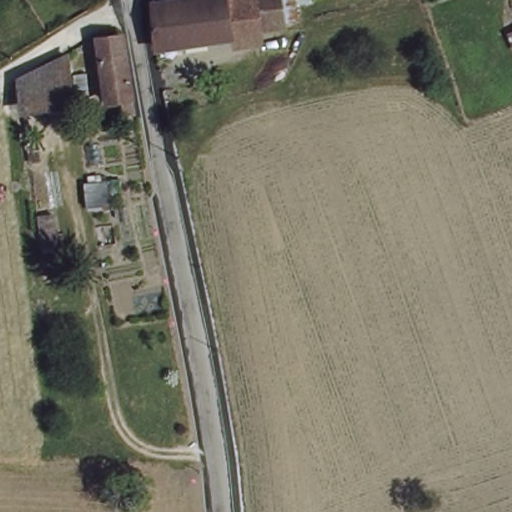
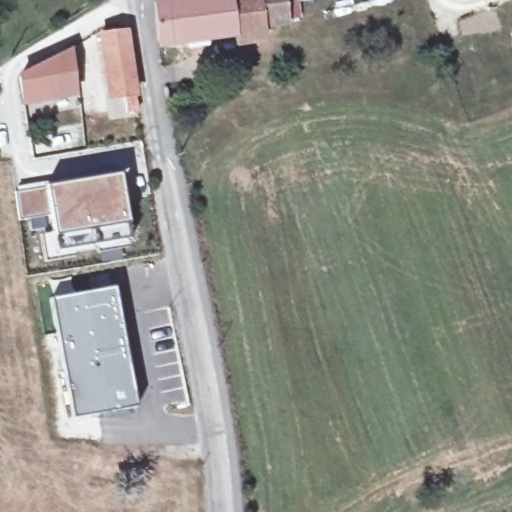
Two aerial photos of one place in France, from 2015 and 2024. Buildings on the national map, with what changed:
unchanged [(283,0),(284,14),(259,18),(259,28),(159,43),(154,1),(161,0),(283,0)]
unchanged [(129,118),(125,101),(109,103),(101,46),(105,41),(125,39),(138,116),(129,118)]
unchanged [(16,83),(23,80),(63,60),(68,106),(20,113),(16,83)]
new [(51,232),(50,228),(44,184),(59,184),(119,174),(129,241),(46,257),(43,234),(51,232)]
new [(44,184),(50,228),(30,230),(28,218),(19,219),(14,188),(44,184)]
new [(115,286),(136,407),(71,418),(49,297),(115,286)]

